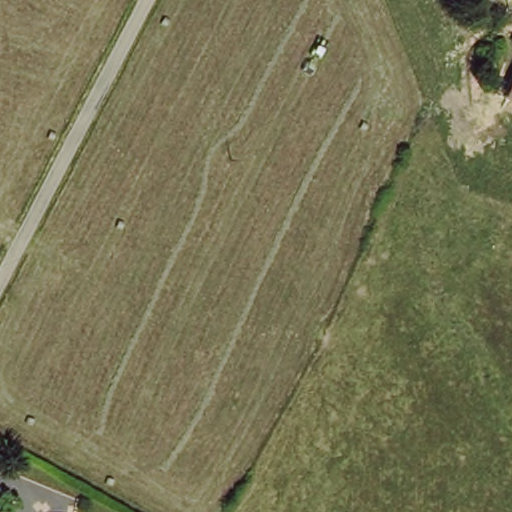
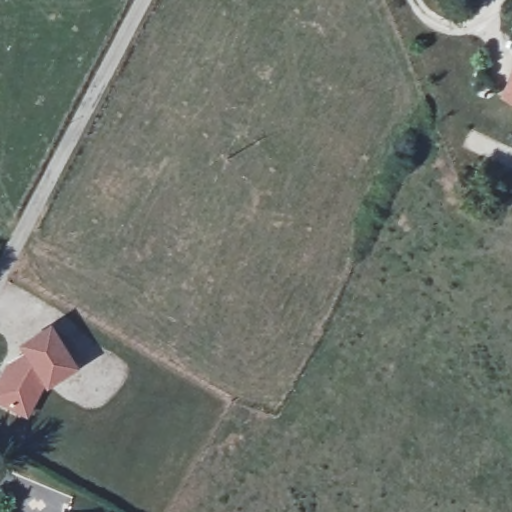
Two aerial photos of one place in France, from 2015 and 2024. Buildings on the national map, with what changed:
unchanged [(506,95),(512,82),(512,99),(506,95)]
new [(12,405),(0,399),(0,376),(9,359),(27,349),(22,341),(50,323),(75,364),(47,382),(44,377),(36,391),(25,412),(12,405)]

